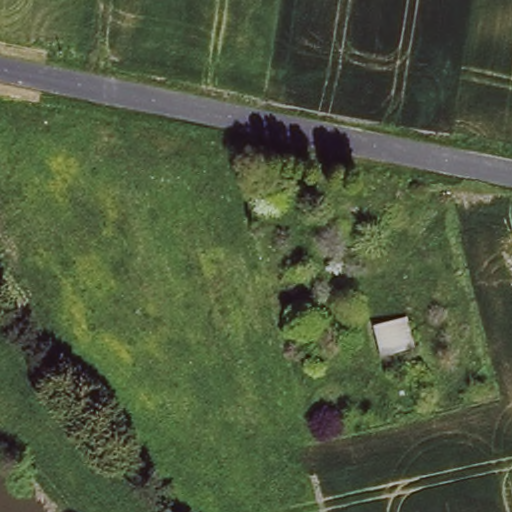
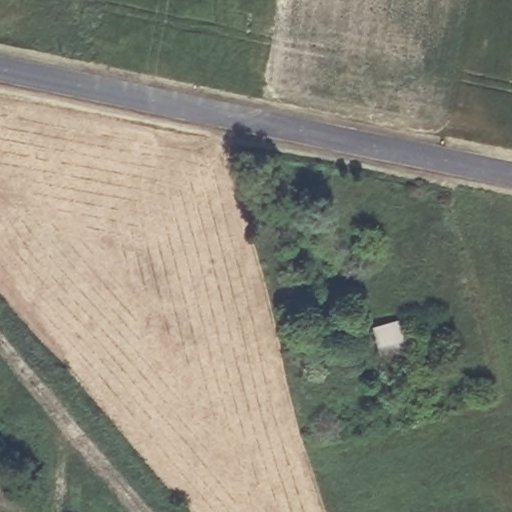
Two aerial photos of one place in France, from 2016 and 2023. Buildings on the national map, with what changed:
unchanged [(383,356),(375,323),(410,316),(417,347),(383,356)]

